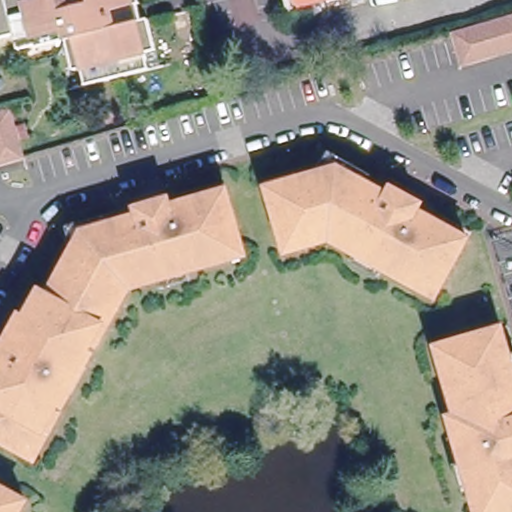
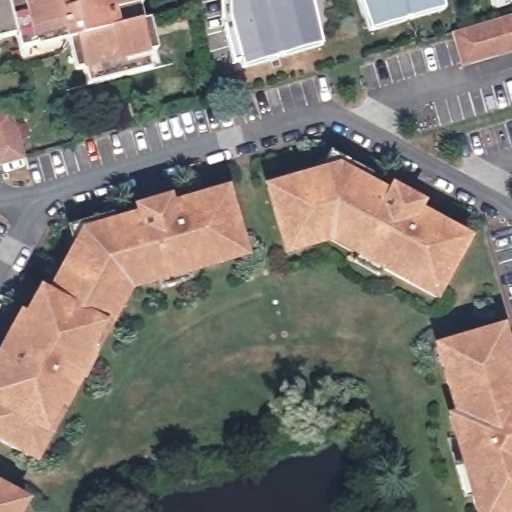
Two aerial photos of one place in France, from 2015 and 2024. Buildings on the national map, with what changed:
unchanged [(145,25),(151,33),(153,44),(146,46),(150,63),(88,77),(80,46),(75,45),(72,33),(67,33),(64,20),(54,22),(52,28),(16,37),(13,27),(0,30),(0,0),(141,0),(145,12),(142,13),(145,25)]
new [(322,45),(241,68),(226,13),(227,0),(311,0),(322,45)]
demolished [(293,7),(291,0),(320,0),(293,7)]
new [(444,9),(368,30),(360,0),(442,0),(444,9)]
unchanged [(456,26),(512,10),(512,45),(465,57),(456,26)]
unchanged [(0,171),(0,106),(8,103),(23,152),(25,156),(28,164),(0,171)]
unchanged [(410,281),(382,266),(378,274),(354,261),(359,253),(355,251),(332,238),(316,242),(285,251),(283,243),(268,187),(266,178),(295,170),(298,177),(320,171),(316,153),(335,154),(370,174),(367,181),(388,192),(392,188),(420,203),(419,210),(444,222),(448,217),(471,231),(468,237),(439,287),(435,296),(410,281)]
unchanged [(56,429),(42,457),(34,452),(0,436),(0,373),(1,372),(0,372),(0,357),(5,348),(23,312),(30,315),(42,291),(56,262),(64,265),(73,245),(67,224),(88,218),(112,211),(114,219),(141,211),(140,204),(170,196),(172,202),(198,196),(226,188),(229,196),(242,244),(244,252),(215,260),(217,268),(187,276),(160,283),(156,275),(128,282),(122,295),(110,320),(99,342),(91,340),(81,359),(88,363),(76,389),(68,386),(57,408),(64,412),(56,429)]
unchanged [(466,498),(458,467),(449,438),(456,435),(451,415),(458,412),(447,375),(437,344),(444,342),(503,325),(510,323),(512,330),(512,512),(478,512),(473,496),(466,498)]
unchanged [(20,486),(28,490),(16,512),(0,512),(0,477),(20,486)]

